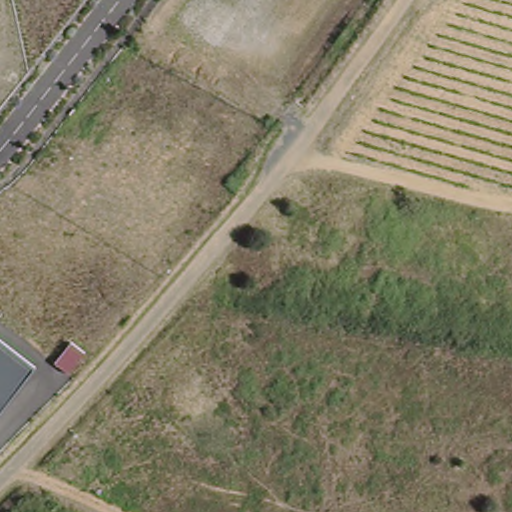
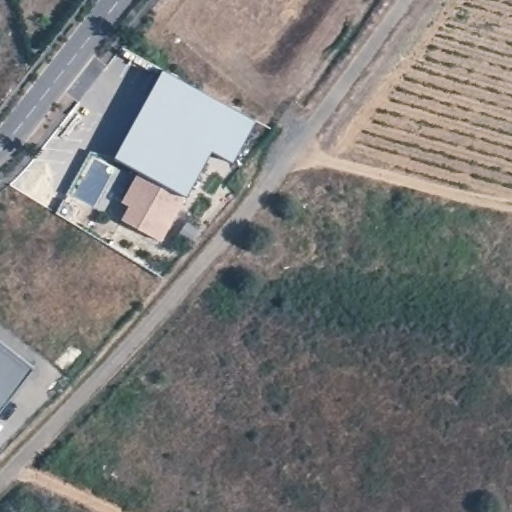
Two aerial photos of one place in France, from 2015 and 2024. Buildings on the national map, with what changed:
new [(163,73),(255,122),(232,165),(211,154),(186,201),(139,176),(115,163),(163,73)]
new [(130,210),(123,206),(139,176),(186,201),(163,245),(123,224),(130,210)]
unchanged [(0,414),(0,340),(35,367),(0,414)]
new [(56,366),(70,346),(83,356),(69,375),(56,366)]

